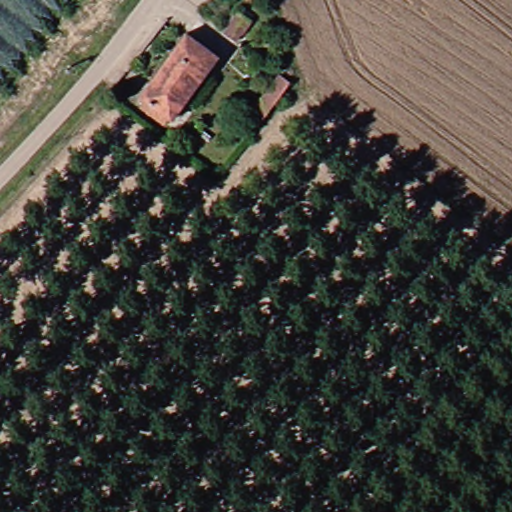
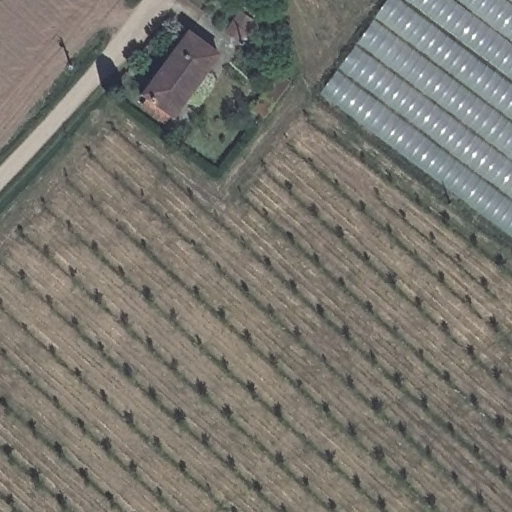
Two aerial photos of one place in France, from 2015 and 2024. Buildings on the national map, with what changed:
new [(512,0),(512,239),(319,95),(387,0),(512,0)]
unchanged [(259,27),(245,45),(230,35),(244,15),(259,27)]
unchanged [(157,77),(192,34),(222,59),(189,100),(157,77)]
unchanged [(139,109),(145,100),(141,97),(157,77),(189,100),(173,122),(169,120),(163,126),(139,109)]
unchanged [(266,100),(283,79),(299,92),(284,114),(276,124),(258,110),(266,100)]

